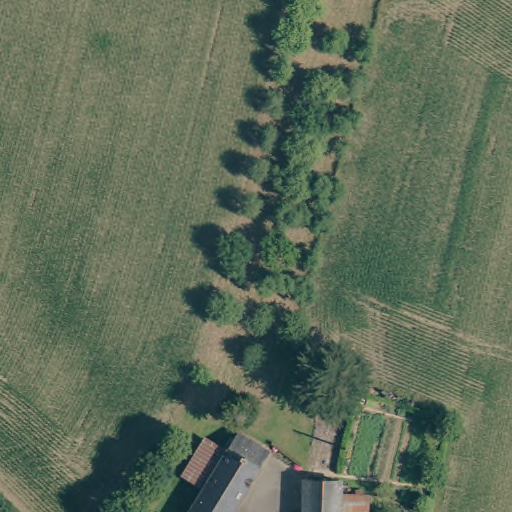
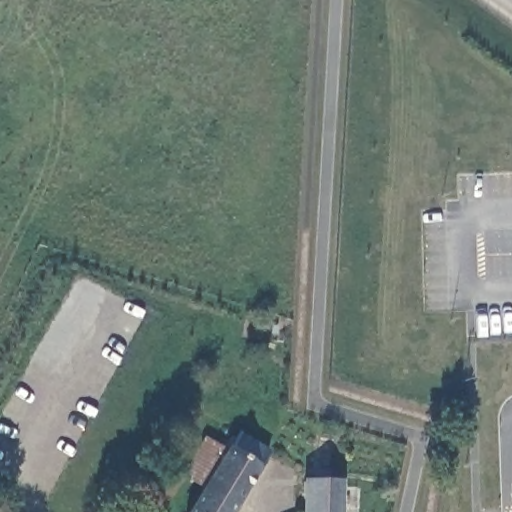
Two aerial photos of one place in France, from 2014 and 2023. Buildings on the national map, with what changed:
unchanged [(222,450),(234,431),(270,452),(232,512),(184,512),(197,489),(222,450)]
unchanged [(176,475),(200,437),(222,450),(197,489),(176,475)]
unchanged [(338,480),(338,494),(337,510),(337,512),(299,512),(301,481),(338,480)]

